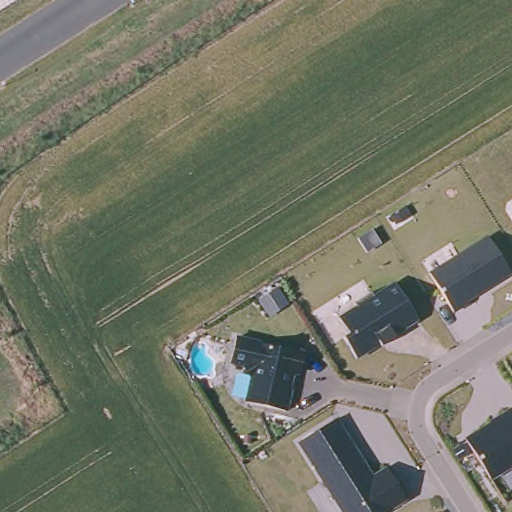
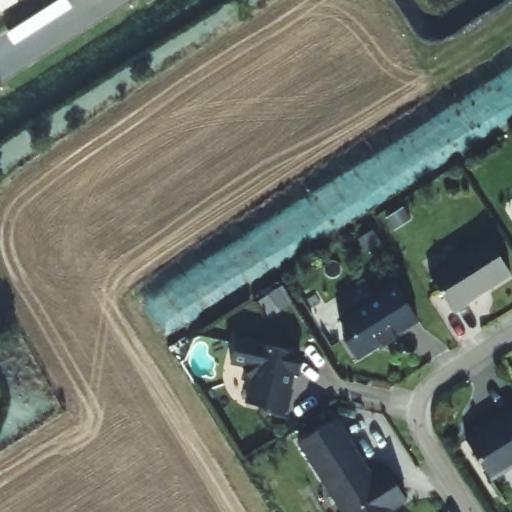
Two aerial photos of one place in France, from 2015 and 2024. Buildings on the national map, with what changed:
unchanged [(512,274),(512,276),(454,313),(428,273),(488,235),(512,274)]
unchanged [(419,322),(357,360),(344,336),(347,335),(336,318),(395,282),(419,322)]
unchanged [(301,375),(293,372),(285,410),(248,400),(255,367),(229,361),(236,336),(304,353),(301,375)]
unchanged [(492,479),(464,438),(512,407),(512,466),(492,479)]
unchanged [(387,467),(408,501),(389,512),(340,512),(296,443),(336,418),(373,475),(387,467)]

